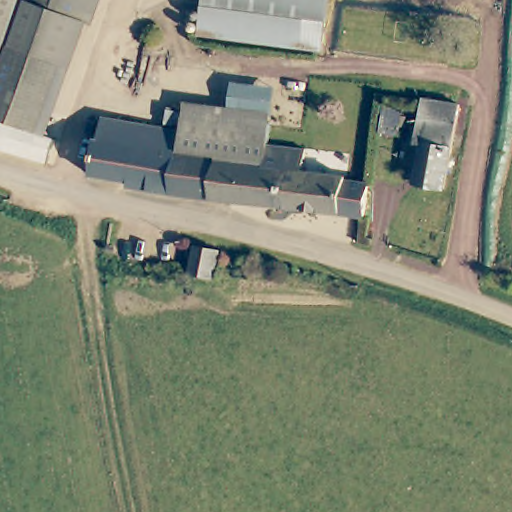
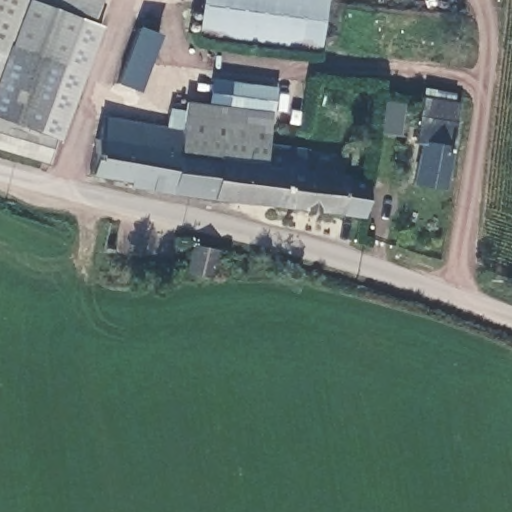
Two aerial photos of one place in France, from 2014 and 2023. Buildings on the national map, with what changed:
unchanged [(0,55),(0,0),(23,0),(4,57),(0,55)]
unchanged [(87,20),(101,25),(49,168),(0,154),(0,68),(4,57),(23,0),(94,0),(87,20)]
unchanged [(236,36),(194,31),(197,0),(241,0),(236,36)]
unchanged [(241,0),(323,0),(318,47),(236,36),(241,0)]
unchanged [(0,68),(0,55),(4,57),(0,68)]
unchanged [(456,101),(453,115),(438,193),(408,188),(415,146),(408,144),(417,102),(419,95),(456,101)]
unchanged [(184,105),(225,112),(265,119),(263,143),(260,167),(218,159),(176,151),(179,136),(184,105)]
unchanged [(104,120),(139,128),(179,136),(176,151),(218,159),(212,198),(128,187),(128,181),(91,177),(97,138),(100,138),(104,120)]
unchanged [(300,149),(299,172),(328,176),(328,170),(341,172),(340,178),(366,182),(363,219),(212,198),(218,159),(260,167),(263,143),(300,149)]
unchanged [(188,272),(197,244),(217,250),(210,278),(188,272)]

